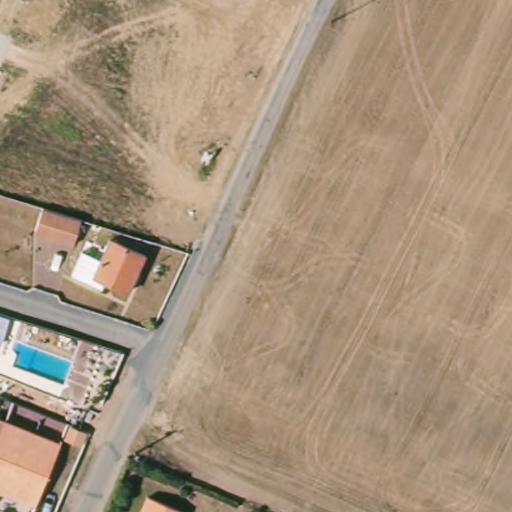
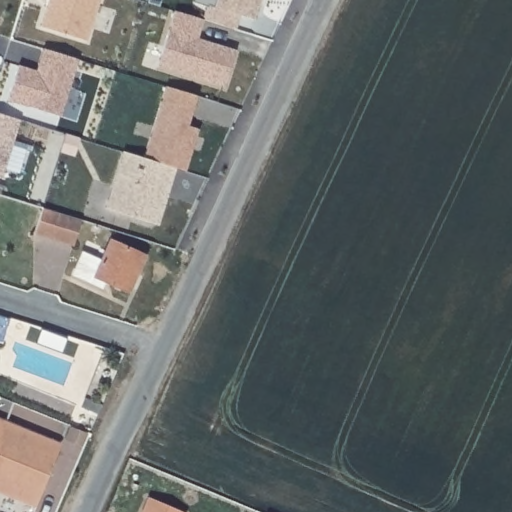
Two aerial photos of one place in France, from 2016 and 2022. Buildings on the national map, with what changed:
new [(98,0),(86,40),(38,26),(46,0),(98,0)]
new [(212,9),(215,0),(261,0),(254,24),(239,19),(235,33),(202,23),(206,8),(212,9)]
new [(174,14),(202,23),(196,42),(235,54),(224,89),(157,69),(174,14)]
new [(35,74),(37,68),(42,51),(77,62),(60,119),(6,103),(17,69),(35,74)]
new [(195,99),(189,118),(185,129),(196,133),(182,175),(172,172),(141,162),(165,89),(195,99)]
new [(17,122),(0,174),(0,117),(17,122)]
new [(142,225),(102,212),(120,155),(141,162),(172,172),(161,205),(154,229),(142,225)]
unchanged [(56,210),(65,213),(67,214),(87,220),(79,246),(40,234),(49,208),(56,210)]
unchanged [(124,248),(155,262),(137,299),(116,289),(113,295),(110,294),(101,290),(84,281),(95,259),(113,268),(124,248)]
unchanged [(60,447),(35,508),(0,493),(0,422),(60,447)]
unchanged [(142,496),(180,512),(135,512),(142,496)]

